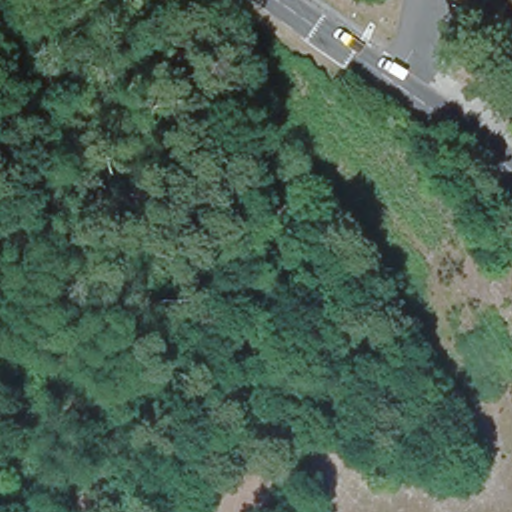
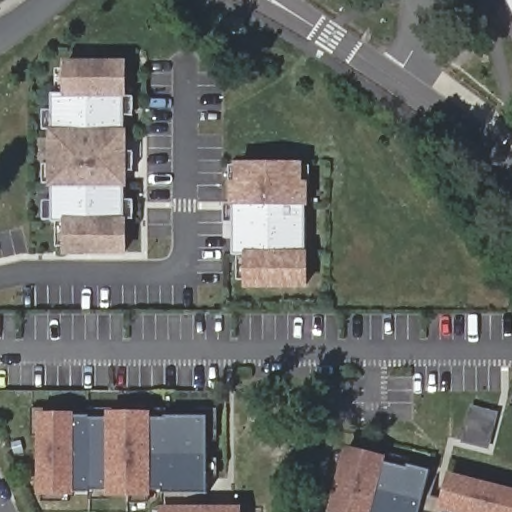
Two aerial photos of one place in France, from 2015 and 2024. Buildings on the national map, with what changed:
unchanged [(510,0),(512,0),(512,4),(510,0)]
new [(63,62),(127,61),(128,97),(124,97),(124,130),(128,130),(129,187),(125,187),(124,218),(128,218),(127,256),(65,255),(63,222),(54,221),(54,188),(51,188),(50,130),(55,130),(55,94),(64,95),(63,62)]
new [(236,181),(236,162),(304,162),(305,182),(309,182),(309,206),(304,206),(304,251),(308,251),(308,287),(245,288),(244,254),(234,254),(235,205),(230,205),(230,181),(236,181)]
new [(472,404),(500,411),(490,449),(462,442),(472,404)]
new [(166,506),(166,494),(162,494),(162,490),(152,490),(152,496),(106,495),(106,490),(91,490),(91,493),(75,492),(75,496),(38,495),(38,413),(76,413),(76,417),(90,417),(89,419),(107,419),(107,411),(151,411),(151,419),(167,419),(167,416),(208,417),(208,493),(190,493),(189,505),(242,505),(242,512),(161,512),(161,506),(166,506)]
new [(429,470),(425,494),(442,498),(450,473),(512,487),(512,512),(429,512),(420,510),(420,512),(329,512),(346,446),(387,456),(385,463),(408,468),(409,465),(429,470)]

